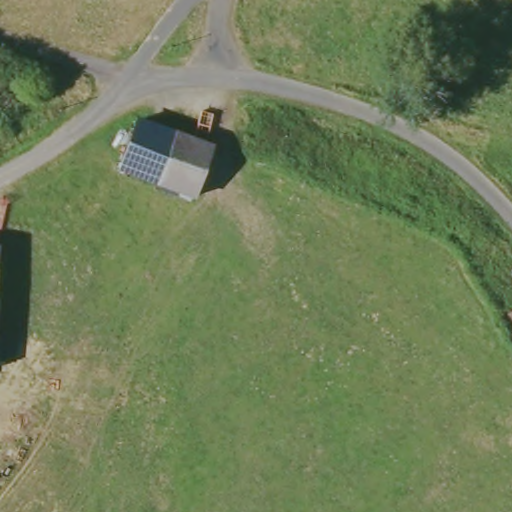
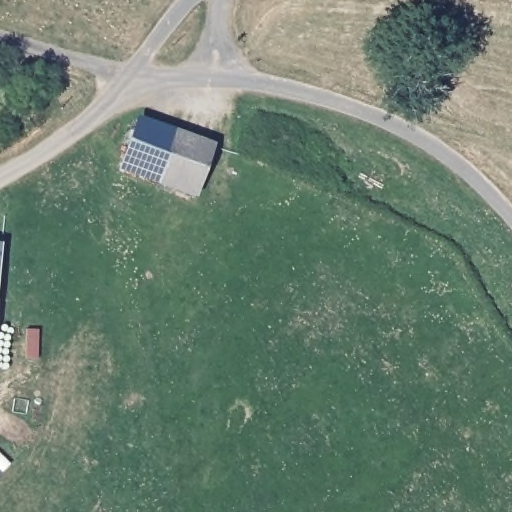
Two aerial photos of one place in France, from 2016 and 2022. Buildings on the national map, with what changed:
unchanged [(121,162),(135,119),(170,131),(154,182),(121,162)]
unchanged [(170,131),(208,144),(193,196),(154,182),(170,131)]

